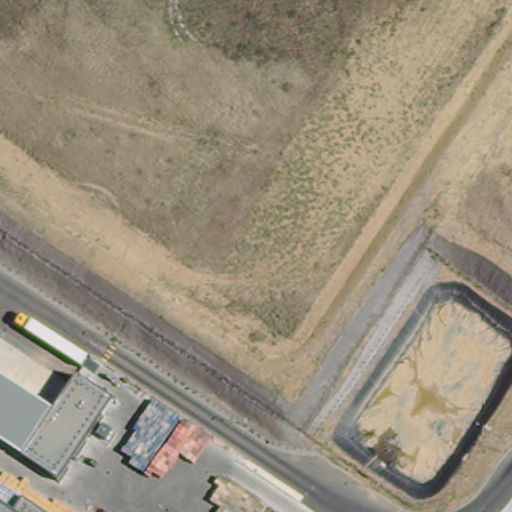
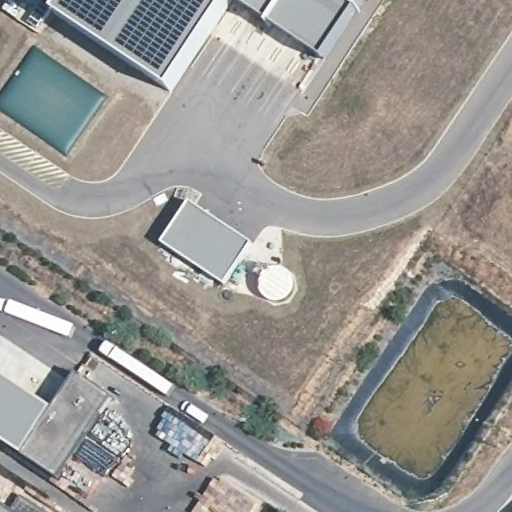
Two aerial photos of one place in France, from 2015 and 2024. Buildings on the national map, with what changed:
new [(172,95),(56,19),(68,0),(234,0),(172,95)]
new [(326,61),(235,0),(366,0),(326,61)]
new [(190,203),(253,245),(225,287),(162,245),(190,203)]
unchanged [(21,455),(0,441),(0,375),(53,410),(77,376),(112,401),(58,481),(21,455)]
unchanged [(5,512),(0,512),(0,509),(5,512)]

